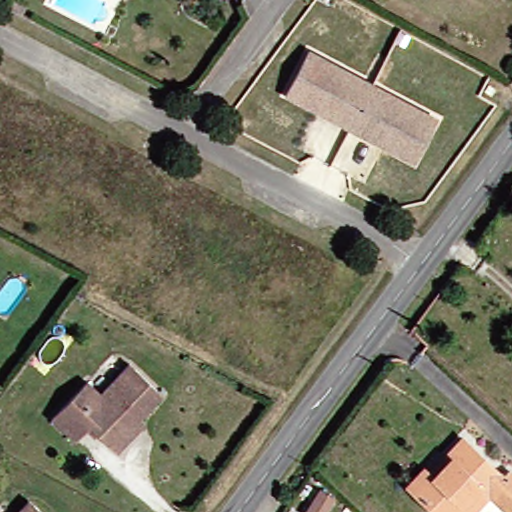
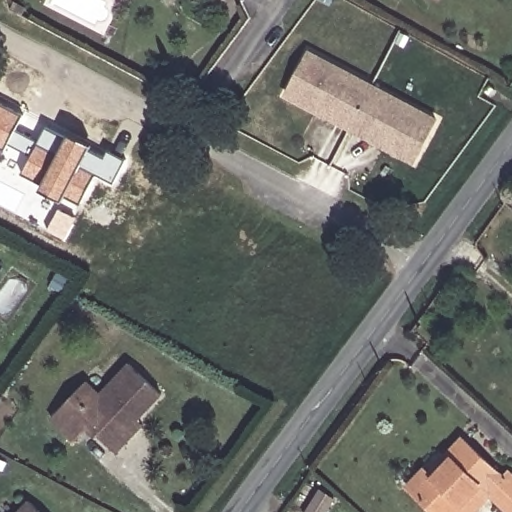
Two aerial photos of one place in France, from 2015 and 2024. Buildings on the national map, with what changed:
unchanged [(352,129),(335,119),(318,111),(288,95),(312,53),(332,64),(348,73),(402,100),(417,109),(438,120),(415,163),(386,146),(370,138),(352,129)]
new [(17,129),(41,141),(47,128),(68,139),(70,134),(93,144),(90,150),(106,159),(110,150),(127,160),(116,183),(98,174),(82,205),(67,195),(64,202),(41,190),(45,184),(21,173),(31,154),(10,143),(6,148),(0,145),(0,103),(24,114),(17,129)]
unchanged [(112,452),(104,443),(89,458),(45,416),(81,379),(94,392),(125,363),(158,395),(133,421),(139,426),(112,452)]
unchanged [(400,484),(417,467),(422,471),(437,454),(455,436),(497,474),(502,470),(512,479),(512,512),(504,512),(482,492),(468,506),(463,512),(430,512),(404,489),(400,484)]
unchanged [(35,512),(8,512),(22,499),(35,512)]

